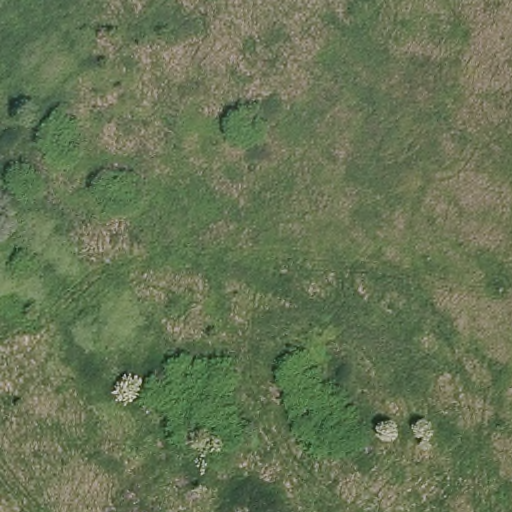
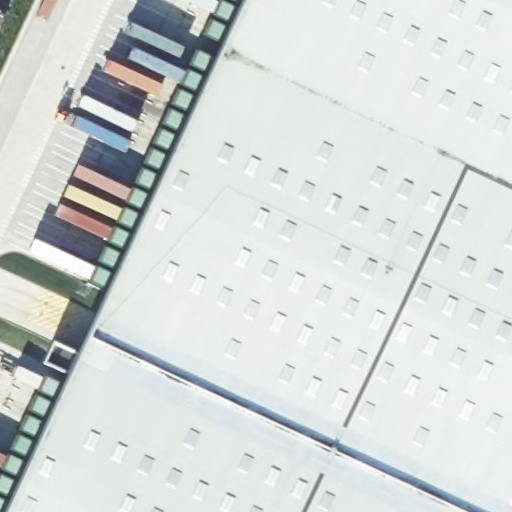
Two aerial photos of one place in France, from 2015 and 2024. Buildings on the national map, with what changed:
new [(231,0),(512,0),(512,512),(0,512),(0,505),(231,0)]

